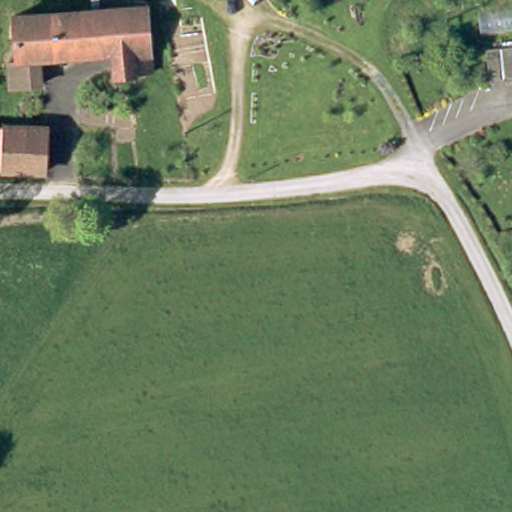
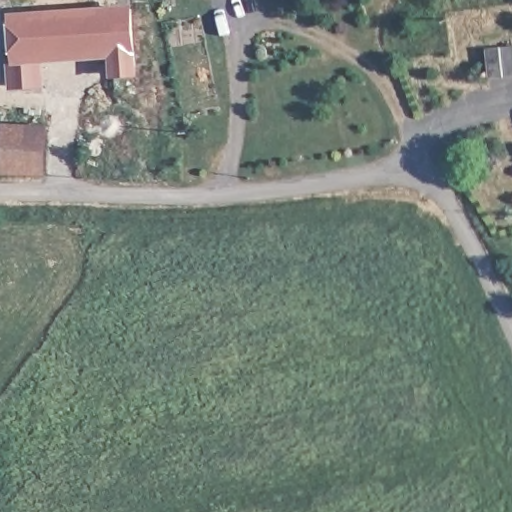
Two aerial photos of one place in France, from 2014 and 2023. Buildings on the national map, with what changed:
unchanged [(148,74),(110,79),(107,55),(104,8),(142,4),(148,74)]
unchanged [(5,64),(2,18),(104,8),(107,55),(30,62),(31,88),(5,89),(0,89),(0,64),(5,64)]
unchanged [(467,45),(512,42),(512,85),(470,91),(467,45)]
unchanged [(0,174),(0,122),(44,119),(42,177),(0,174)]

